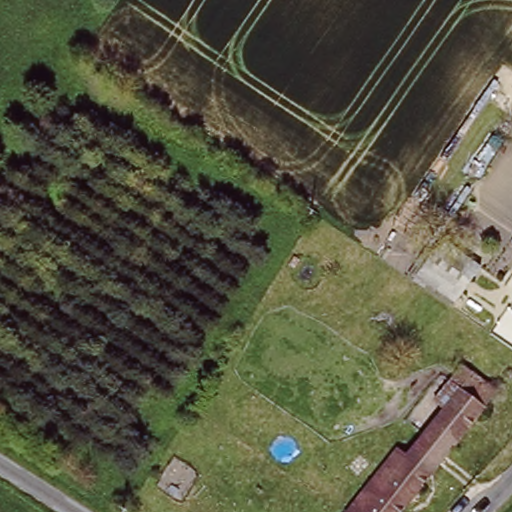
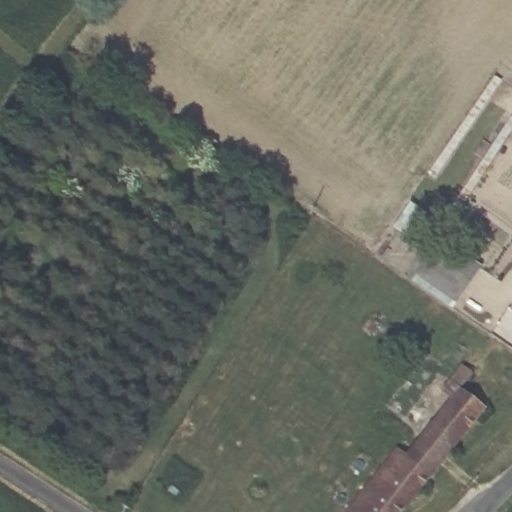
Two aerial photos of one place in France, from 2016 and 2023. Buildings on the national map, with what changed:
unchanged [(438,238),(485,266),(455,310),(413,279),(438,238)]
unchanged [(447,403),(440,398),(452,385),(458,389),(471,375),(494,392),(482,408),(397,512),(347,512),(402,445),(408,451),(447,403)]

